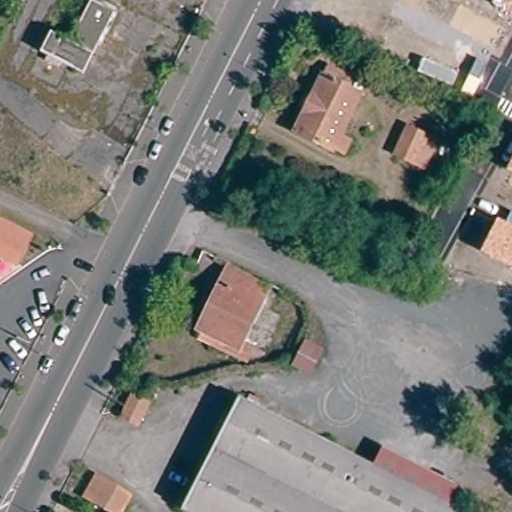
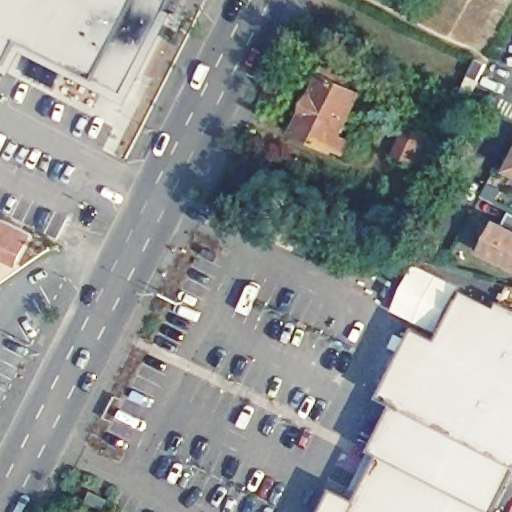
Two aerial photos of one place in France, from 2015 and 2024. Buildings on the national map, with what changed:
new [(170,8),(177,11),(130,104),(26,51),(14,74),(0,68),(0,0),(174,0),(170,8)]
demolished [(52,32),(70,41),(91,2),(113,14),(83,72),(43,51),(52,32)]
unchanged [(342,149),(328,142),(291,125),(301,105),(295,101),(301,88),(308,91),(318,71),(355,89),(335,129),(349,135),(342,149)]
unchanged [(421,166),(388,151),(401,121),(435,135),(431,145),(425,157),(421,166)]
unchanged [(507,170),(512,159),(512,173),(507,170)]
unchanged [(27,224),(12,254),(0,249),(0,210),(27,224)]
unchanged [(512,213),(512,266),(481,252),(496,219),(505,224),(510,212),(512,213)]
demolished [(265,281),(238,336),(234,343),(199,326),(194,323),(225,260),(265,281)]
new [(417,264),(468,292),(446,336),(394,311),(417,264)]
new [(498,510),(501,512),(325,512),(338,486),(363,499),(387,453),(375,448),(398,403),(384,396),(419,326),(443,339),(468,292),(503,309),(507,301),(512,304),(512,482),(498,510)]
demolished [(298,335),(315,343),(307,361),(290,352),(298,335)]
demolished [(127,384),(145,393),(137,411),(118,402),(127,384)]
demolished [(341,453),(368,466),(435,500),(459,512),(185,512),(179,508),(235,400),(341,453)]
unchanged [(109,512),(89,501),(84,498),(96,476),(101,479),(132,496),(124,512),(109,512)]

